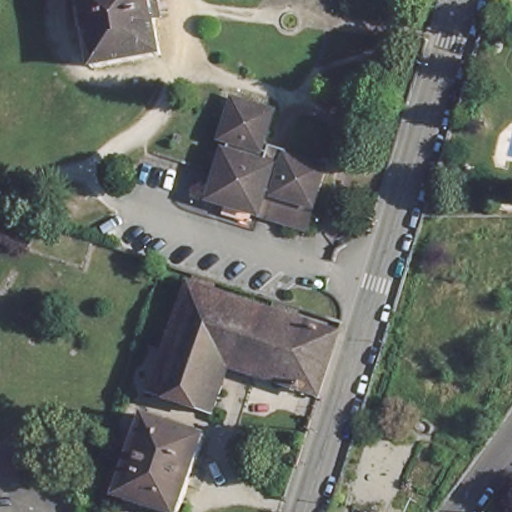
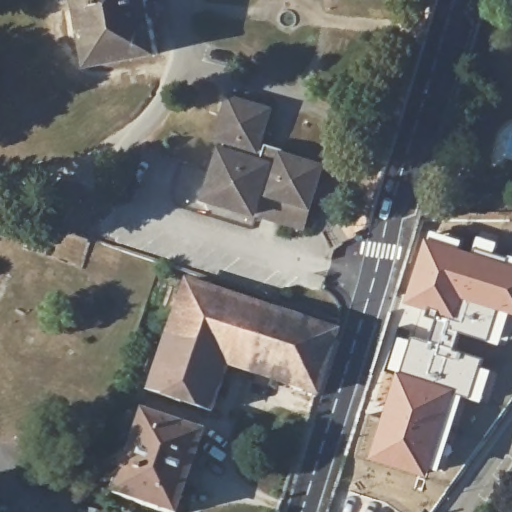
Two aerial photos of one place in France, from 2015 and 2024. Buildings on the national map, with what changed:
unchanged [(162,0),(165,15),(150,18),(156,52),(87,65),(82,40),(68,43),(62,7),(75,5),(74,0),(146,0),(146,2),(159,0),(162,0)]
unchanged [(261,190),(254,212),(202,196),(216,153),(220,155),(225,137),(216,134),(228,92),(270,105),(258,146),(287,156),(288,154),(322,165),(310,204),(261,190)]
unchanged [(302,226),(254,212),(261,190),(310,204),(302,226)]
new [(396,372),(387,370),(398,332),(411,335),(418,311),(403,307),(411,275),(427,229),(464,240),(462,246),(472,249),(477,235),(500,241),(496,251),(512,255),(512,313),(501,346),(461,333),(457,348),(485,358),(483,366),(495,370),(483,403),(465,397),(443,463),(434,479),(370,458),(384,408),(396,372)]
demolished [(122,247),(115,268),(80,256),(87,235),(122,247)]
unchanged [(245,372),(218,363),(202,410),(142,390),(180,280),(260,308),(245,372)]
unchanged [(328,331),(308,393),(245,372),(260,308),(328,331)]
new [(512,351),(501,346),(512,313),(512,351)]
unchanged [(140,412),(199,433),(173,512),(163,512),(111,494),(140,412)]

